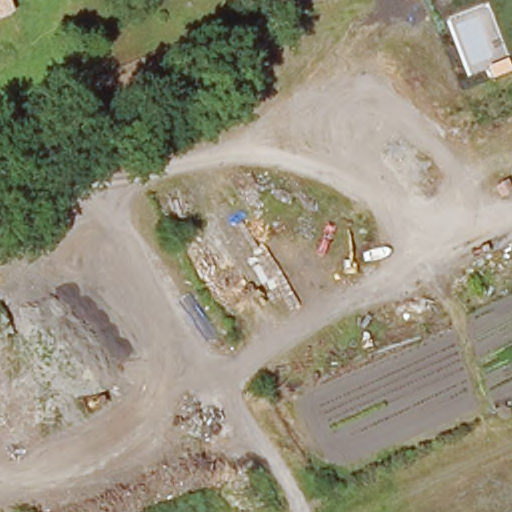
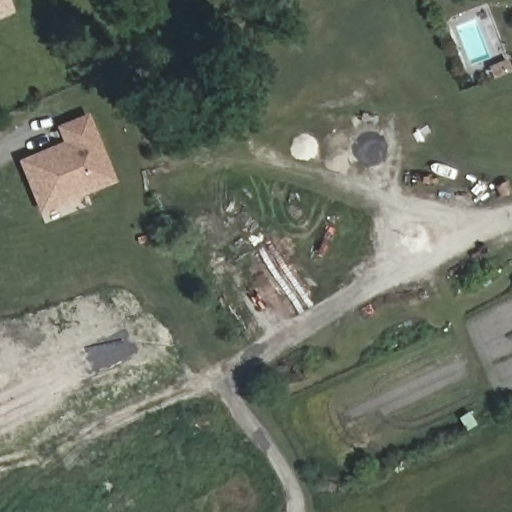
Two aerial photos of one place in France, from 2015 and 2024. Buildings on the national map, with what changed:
unchanged [(0,14),(0,0),(5,0),(9,10),(0,14)]
new [(39,213),(16,159),(61,141),(55,125),(88,113),(115,181),(39,213)]

